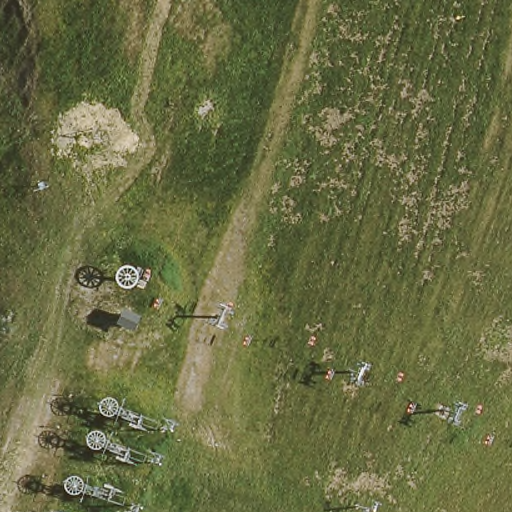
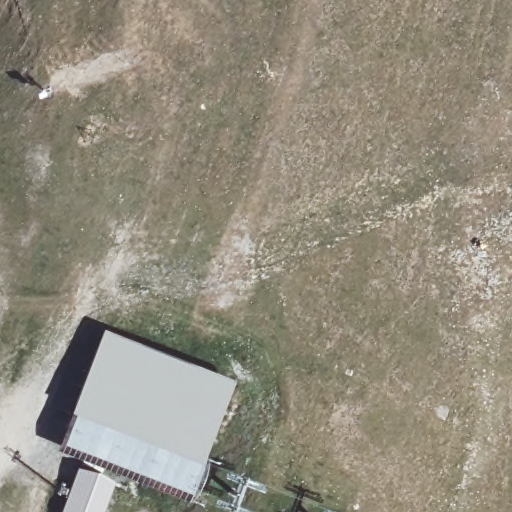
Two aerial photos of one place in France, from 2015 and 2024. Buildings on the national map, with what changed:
new [(103,329),(233,379),(198,480),(188,501),(57,450),(103,329)]
unchanged [(112,485),(102,512),(60,512),(76,472),(112,485)]

